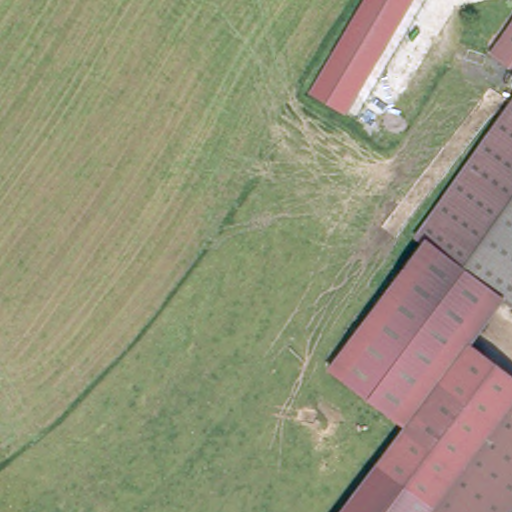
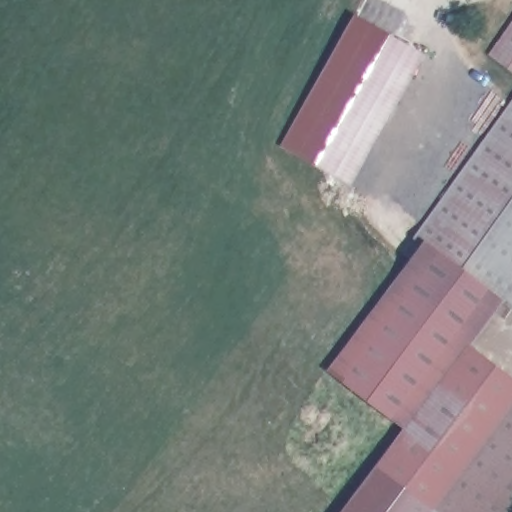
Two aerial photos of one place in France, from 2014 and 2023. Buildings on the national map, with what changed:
new [(427,54),(352,186),(282,146),(357,14),(427,54)]
unchanged [(509,58),(512,54),(512,61),(509,58)]
unchanged [(455,263),(434,247),(426,241),(512,127),(512,193),(455,263)]
unchanged [(508,304),(455,263),(512,193),(512,299),(508,304)]
unchanged [(508,304),(474,349),(412,431),(353,386),(337,373),(434,247),(455,263),(508,304)]
unchanged [(512,299),(512,307),(508,304),(512,299)]
unchanged [(439,512),(382,469),(412,431),(474,349),(512,378),(512,512),(439,512)]
unchanged [(347,512),(382,469),(439,512),(347,512)]

